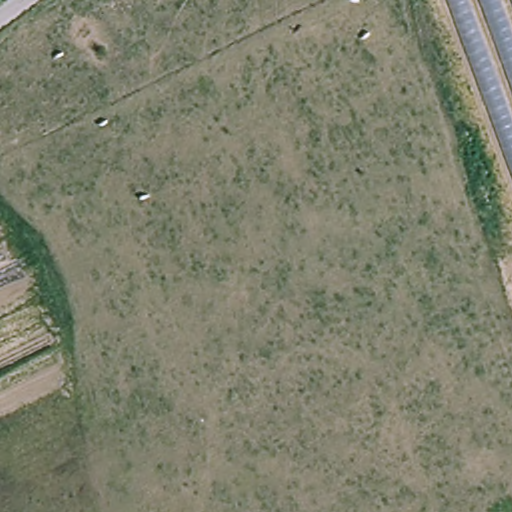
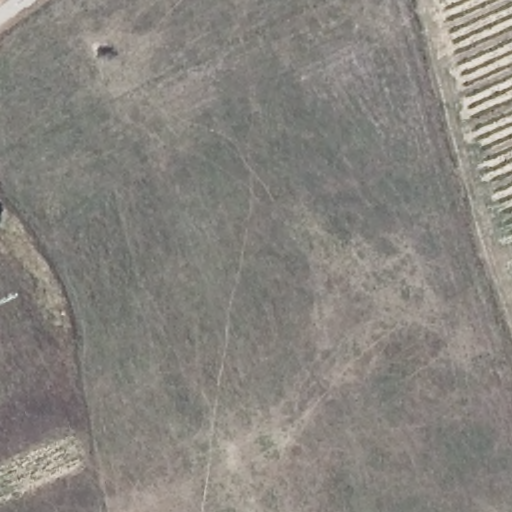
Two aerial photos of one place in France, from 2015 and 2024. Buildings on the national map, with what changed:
demolished [(512,0),(512,177),(448,0),(512,0)]
new [(0,387),(0,366),(13,360),(21,376),(0,387)]

